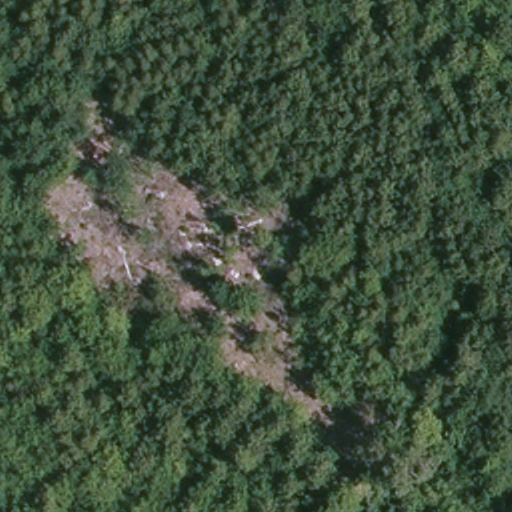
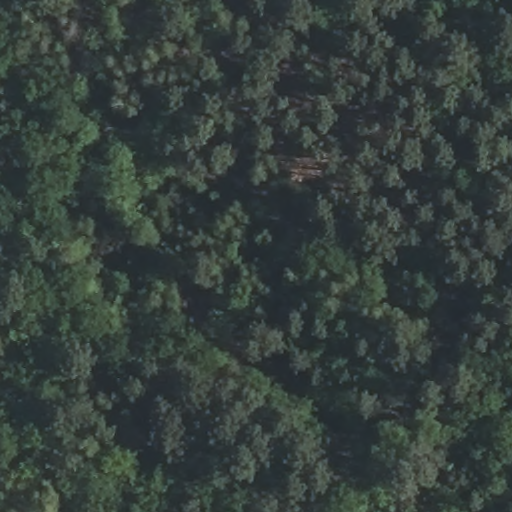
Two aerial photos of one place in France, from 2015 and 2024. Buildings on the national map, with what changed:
[]

